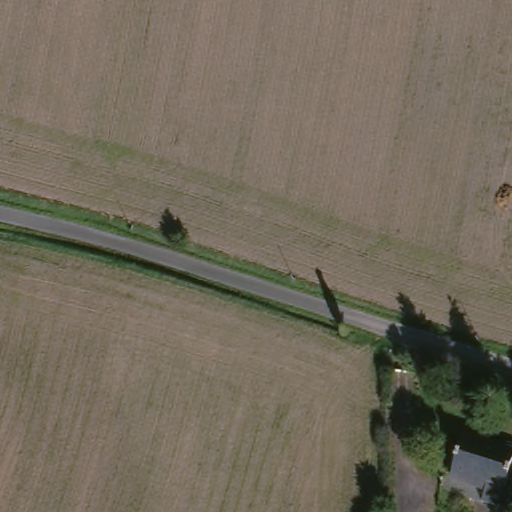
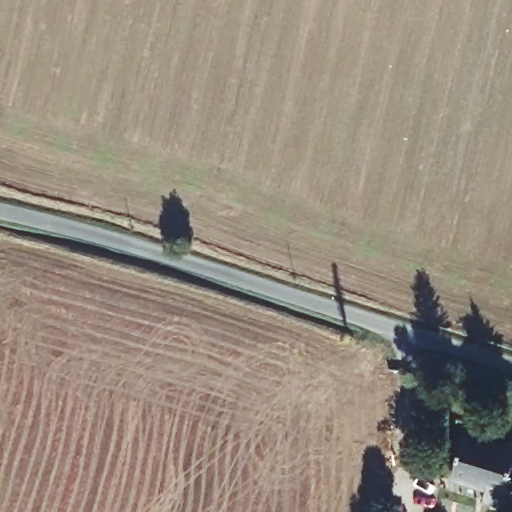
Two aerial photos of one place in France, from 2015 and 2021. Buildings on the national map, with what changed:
unchanged [(502,495),(448,478),(461,437),(512,452),(512,464),(502,495)]

